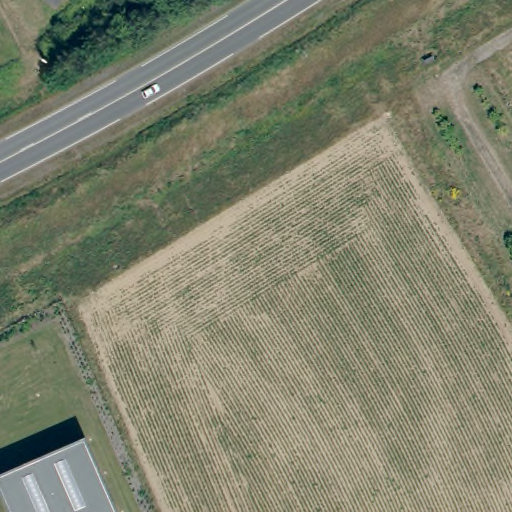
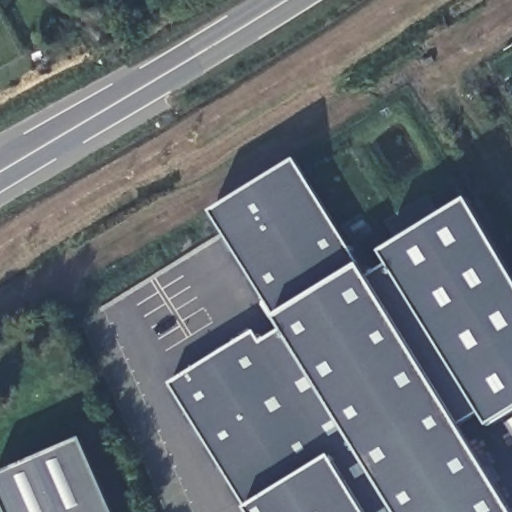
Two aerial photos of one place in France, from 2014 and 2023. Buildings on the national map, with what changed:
new [(250,508),(174,385),(279,318),(216,212),(298,162),(363,268),(512,506),(512,512),(252,512),(250,508)]
new [(491,427),(481,412),(460,425),(368,276),(390,262),(383,252),(470,199),(512,270),(512,413),(491,427)]
unchanged [(0,492),(0,477),(84,441),(115,512),(9,512),(0,492)]

